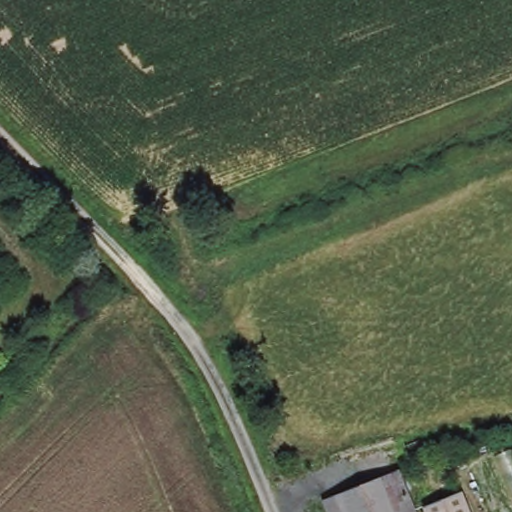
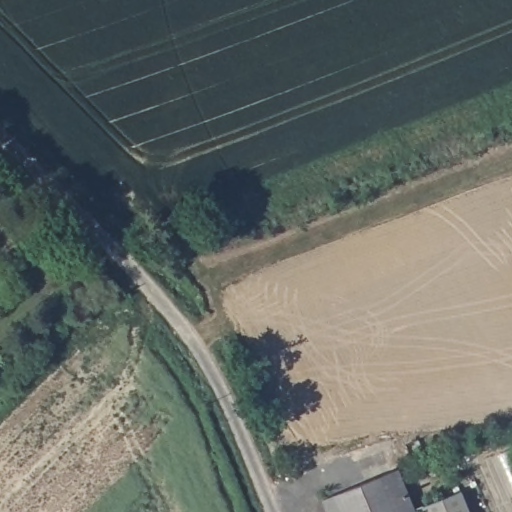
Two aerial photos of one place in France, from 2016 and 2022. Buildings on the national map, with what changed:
unchanged [(400,465),(418,510),(411,512),(372,512),(360,481),(400,465)]
unchanged [(360,481),(372,512),(329,512),(322,495),(360,481)]
unchanged [(428,509),(457,499),(461,512),(430,512),(428,509)]
unchanged [(418,510),(419,512),(411,512),(418,510)]

